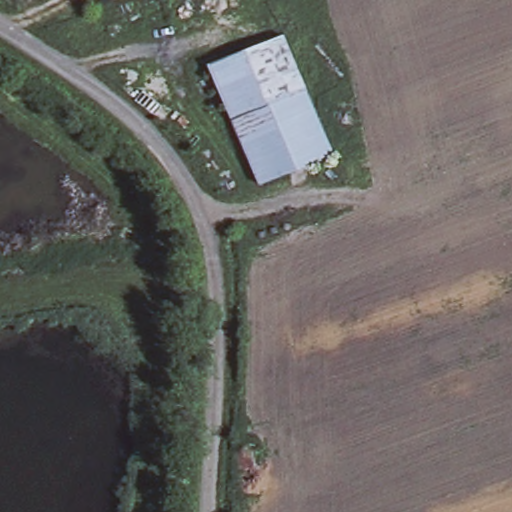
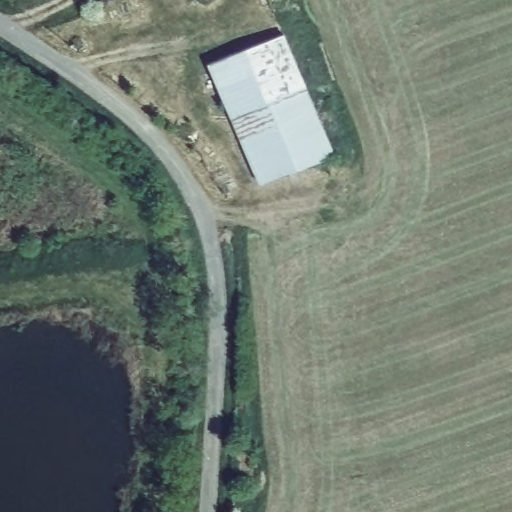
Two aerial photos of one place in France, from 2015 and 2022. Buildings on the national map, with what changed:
unchanged [(290,44),(329,144),(256,171),(218,71),(290,44)]

